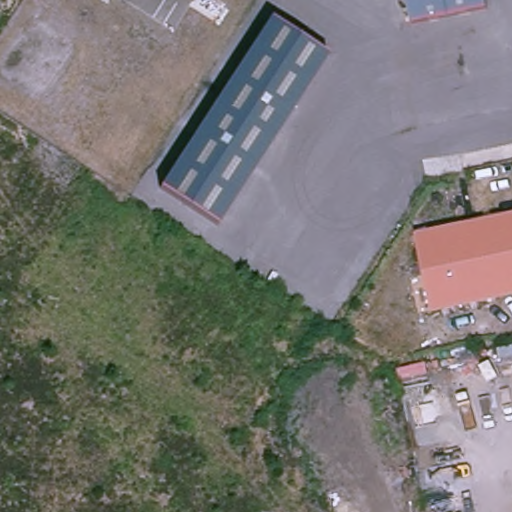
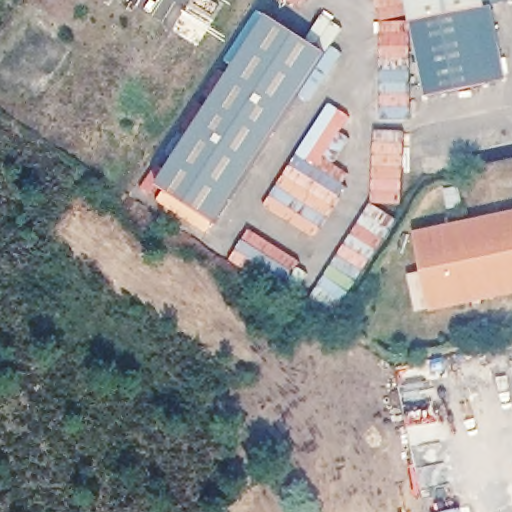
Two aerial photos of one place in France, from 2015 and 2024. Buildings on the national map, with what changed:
unchanged [(488,8),(414,24),(409,0),(486,0),(488,8)]
new [(512,2),(492,6),(506,80),(428,96),(414,24),(488,8),(486,0),(512,0),(512,2)]
unchanged [(329,56),(218,225),(161,187),(272,19),(329,56)]
unchanged [(512,294),(434,310),(419,236),(512,217),(512,294)]

